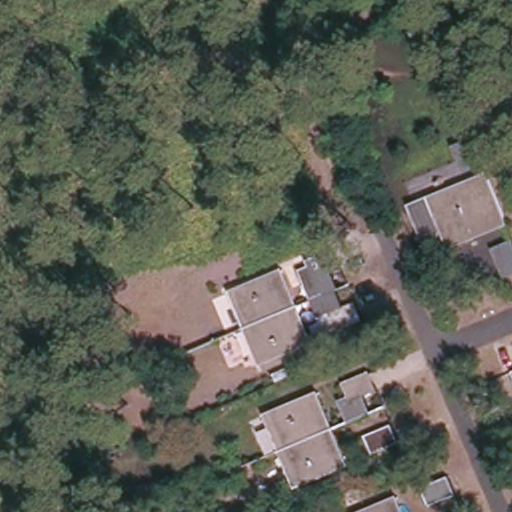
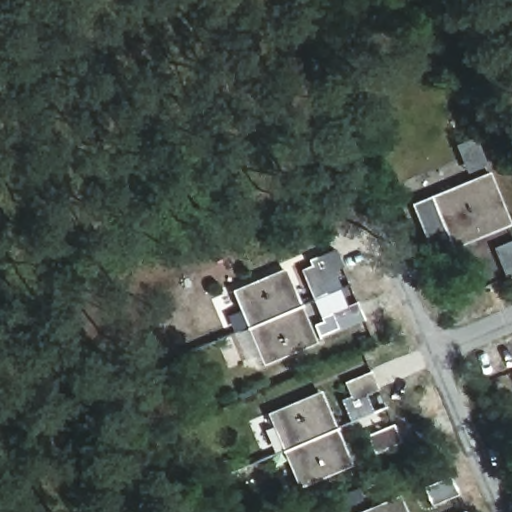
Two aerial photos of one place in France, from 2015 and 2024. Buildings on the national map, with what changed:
unchanged [(509,225),(433,257),(412,203),(487,172),(509,225)]
unchanged [(506,278),(493,247),(512,239),(512,275),(506,278)]
unchanged [(342,268),(330,273),(339,293),(341,293),(347,306),(356,302),(362,319),(316,338),(310,322),(323,316),(318,303),(316,304),(301,266),(310,263),(307,259),(333,248),(342,268)]
unchanged [(230,290),(284,268),(299,305),(245,327),(230,290)]
unchanged [(299,305),(315,343),(260,365),(245,327),(299,305)]
unchanged [(346,421),(338,401),(348,396),(342,382),(370,370),(377,389),(366,394),(372,411),(346,421)]
unchanged [(265,411),(321,388),(336,425),(280,449),(265,411)]
unchanged [(396,437),(370,448),(362,429),(388,419),(396,437)]
unchanged [(336,425),(352,465),(296,488),(280,449),(336,425)]
unchanged [(458,494),(432,505),(423,486),(450,476),(458,494)]
unchanged [(403,512),(362,512),(397,497),(403,512)]

